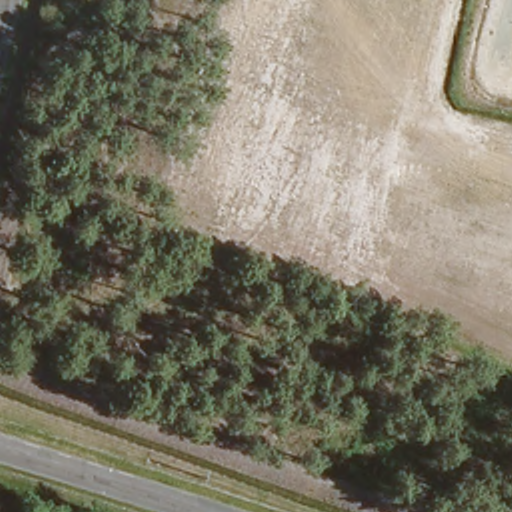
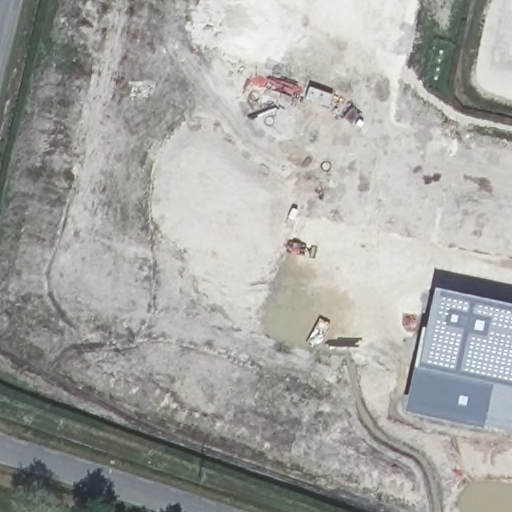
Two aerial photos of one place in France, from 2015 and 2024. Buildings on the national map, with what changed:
new [(512,306),(512,435),(402,411),(432,288),(512,306)]

